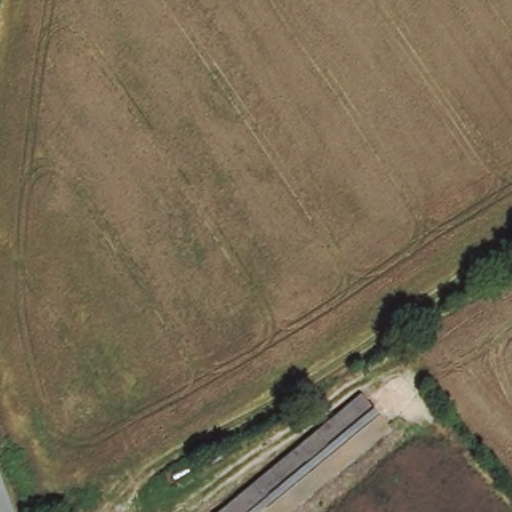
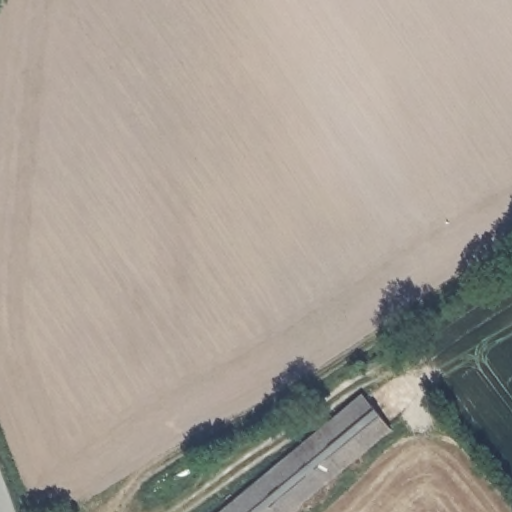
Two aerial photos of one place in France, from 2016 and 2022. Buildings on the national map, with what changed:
unchanged [(385,427),(284,512),(216,512),(357,394),(385,427)]

